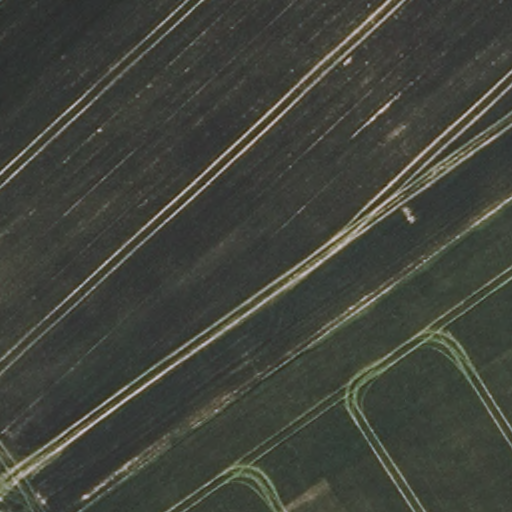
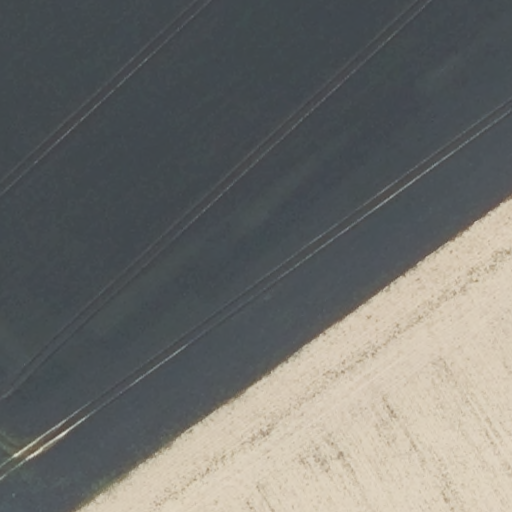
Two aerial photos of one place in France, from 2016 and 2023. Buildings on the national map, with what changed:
[]

